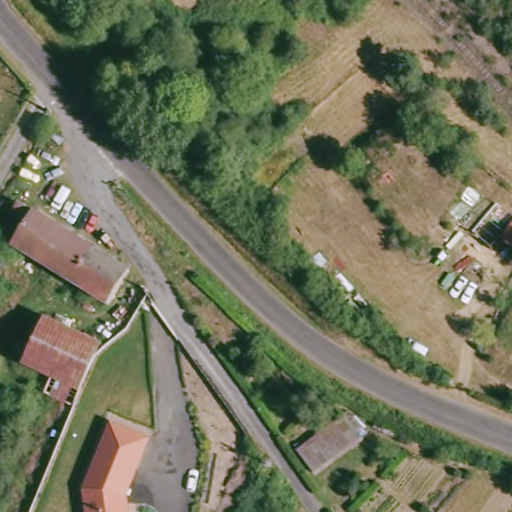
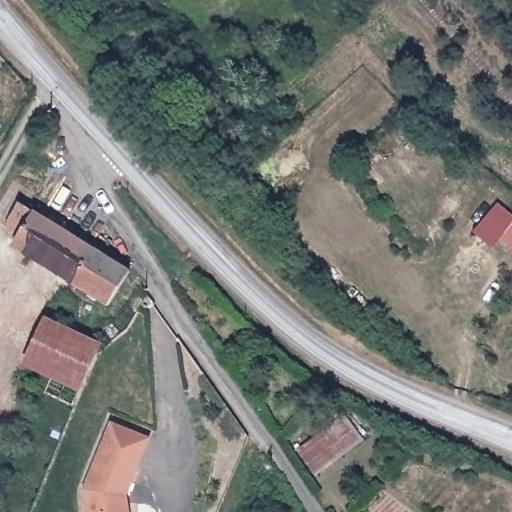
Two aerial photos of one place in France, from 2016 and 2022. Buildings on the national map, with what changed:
unchanged [(18,203),(126,268),(107,304),(16,250),(20,239),(3,228),(18,203)]
new [(512,214),(512,243),(503,235),(491,249),(474,233),(499,203),(512,214)]
demolished [(12,290),(0,319),(0,285),(12,290)]
unchanged [(72,406),(41,390),(49,373),(20,360),(39,320),(97,347),(72,406)]
unchanged [(341,421),(354,440),(308,469),(298,453),(305,442),(341,421)]
unchanged [(153,438),(130,494),(127,496),(128,501),(131,501),(133,512),(92,512),(88,489),(115,422),(153,438)]

